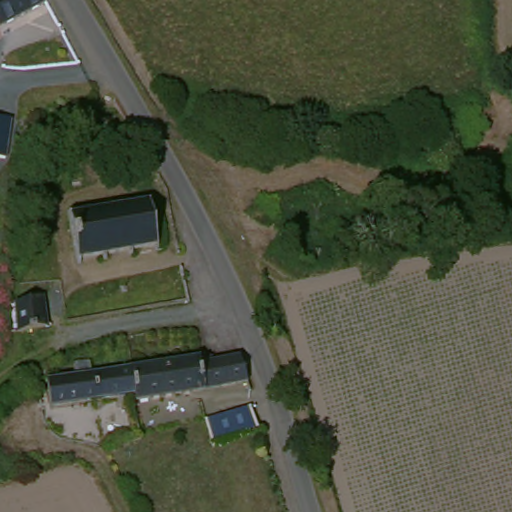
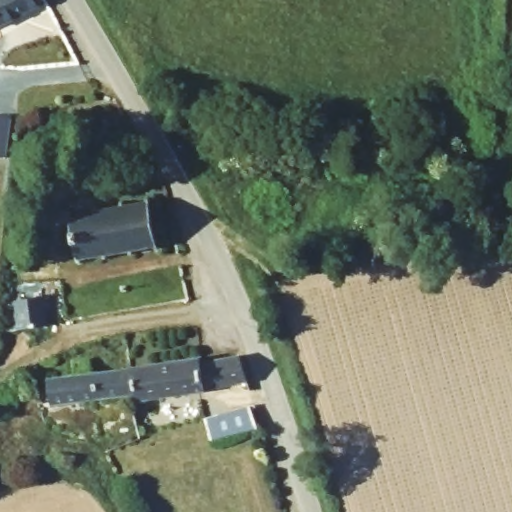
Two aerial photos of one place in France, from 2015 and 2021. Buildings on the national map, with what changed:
unchanged [(0,23),(0,0),(39,0),(0,23)]
unchanged [(23,105),(18,144),(0,142),(0,103),(23,105)]
unchanged [(159,245),(77,257),(69,214),(151,202),(159,245)]
unchanged [(48,322),(26,328),(21,295),(43,292),(48,322)]
unchanged [(136,396),(136,391),(131,361),(131,359),(201,352),(202,360),(239,354),(247,383),(136,396)]
unchanged [(54,400),(50,367),(76,365),(76,354),(91,353),(93,363),(131,359),(131,361),(136,391),(130,392),(54,400)]

